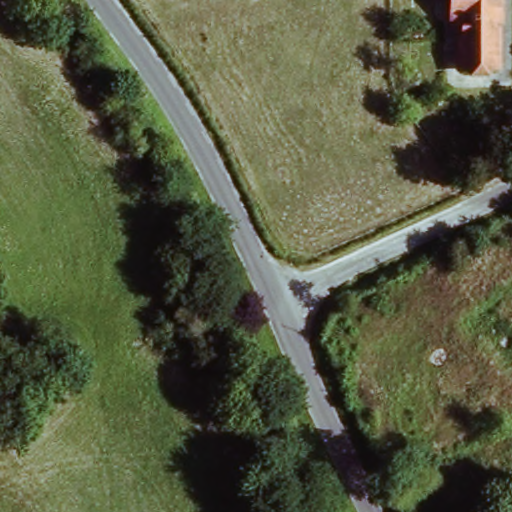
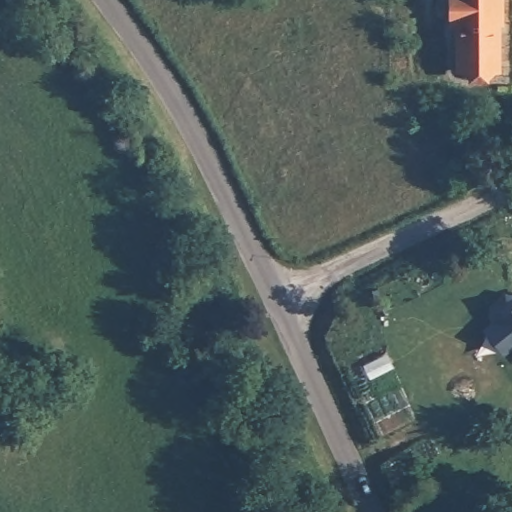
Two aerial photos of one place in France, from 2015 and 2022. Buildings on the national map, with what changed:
unchanged [(465,24),(454,24),(453,0),(502,0),(503,3),(504,24),(498,25),(497,30),(500,70),(494,71),(468,72),(465,24)]
new [(488,330),(497,323),(491,316),(492,308),(506,296),(512,296),(512,348),(506,353),(488,330)]

